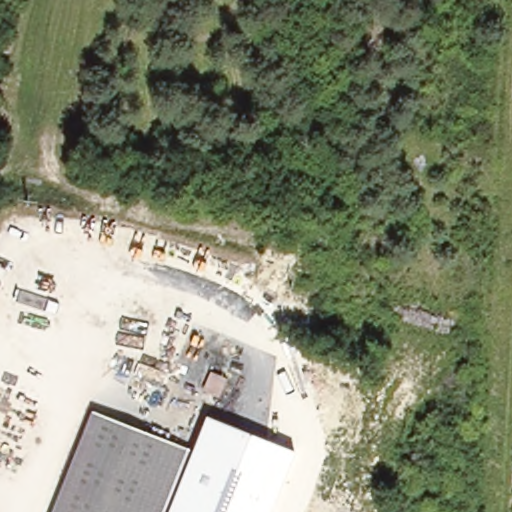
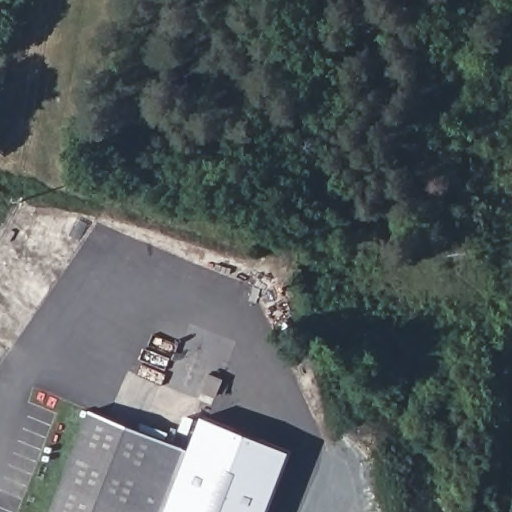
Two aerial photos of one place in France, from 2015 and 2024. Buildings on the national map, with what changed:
unchanged [(158,512),(53,512),(93,411),(184,446),(158,512)]
unchanged [(271,512),(167,512),(206,415),(294,451),(271,512)]

